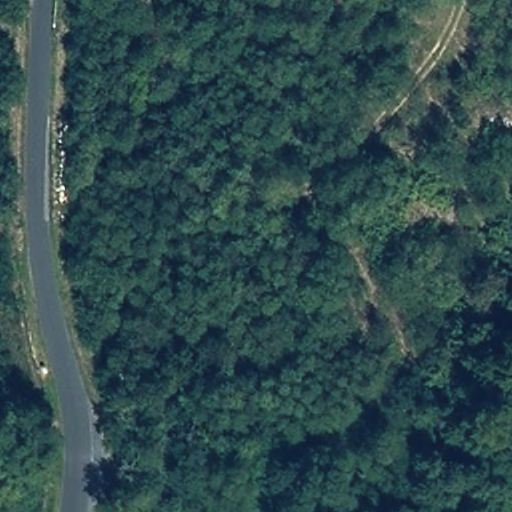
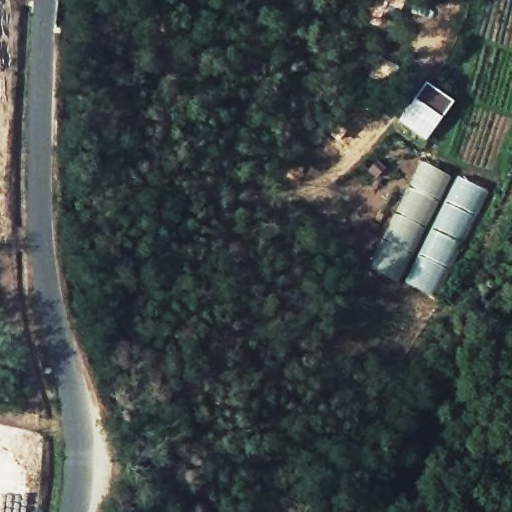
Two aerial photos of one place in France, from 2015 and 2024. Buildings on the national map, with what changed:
new [(454,102),(426,142),(398,122),(425,82),(454,102)]
new [(488,194),(437,298),(370,267),(422,162),(488,194)]

